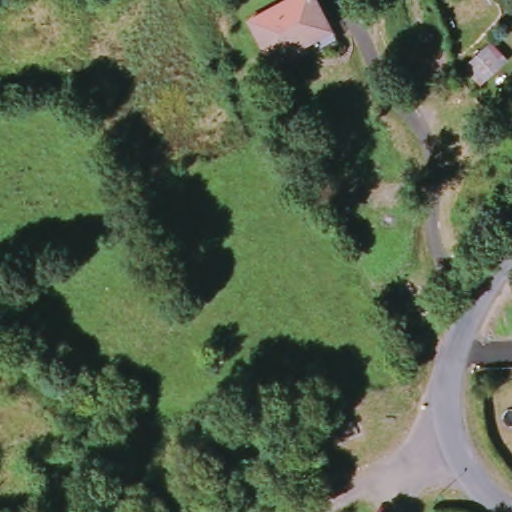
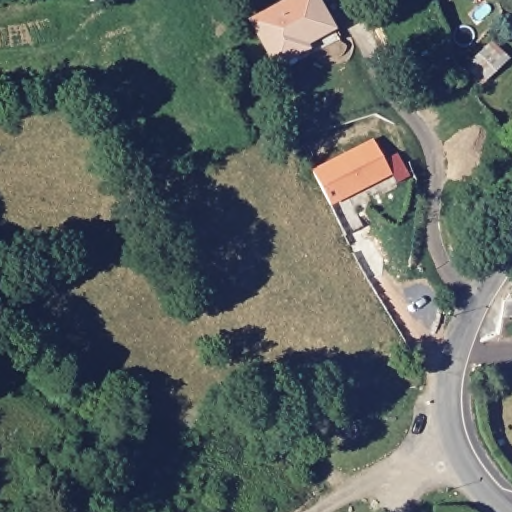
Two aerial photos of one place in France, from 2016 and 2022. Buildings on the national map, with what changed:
unchanged [(253,20),(295,0),(320,0),(335,28),(301,45),(306,54),(278,67),(253,20)]
unchanged [(469,62),(499,45),(510,62),(479,80),(469,62)]
unchanged [(56,81),(56,95),(0,98),(0,82),(56,81)]
new [(313,171),(373,139),(384,162),(398,155),(409,176),(397,182),(393,175),(331,207),(313,171)]

